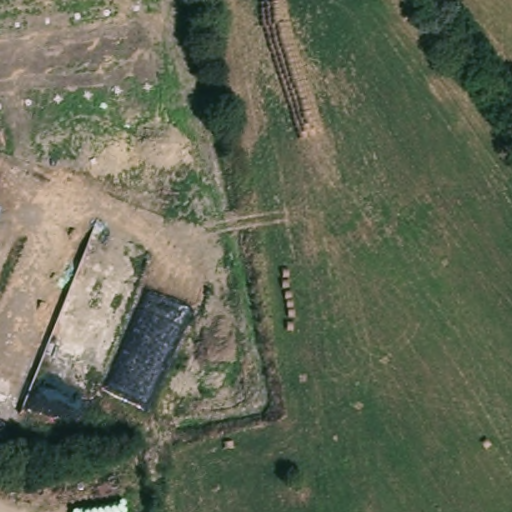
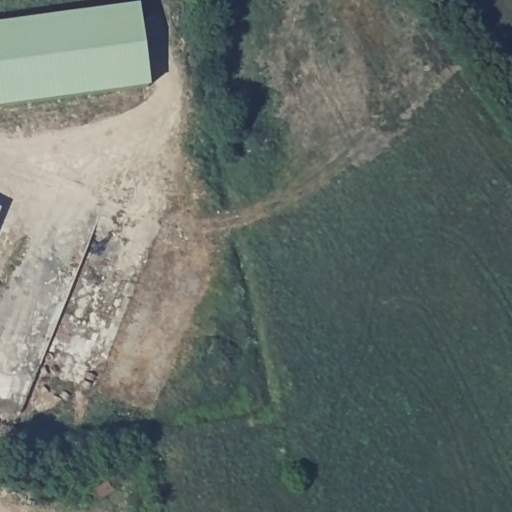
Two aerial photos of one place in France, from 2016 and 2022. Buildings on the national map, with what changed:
new [(124,5),(136,85),(0,106),(0,23),(124,5)]
unchanged [(2,209),(0,214),(0,207),(2,209)]

